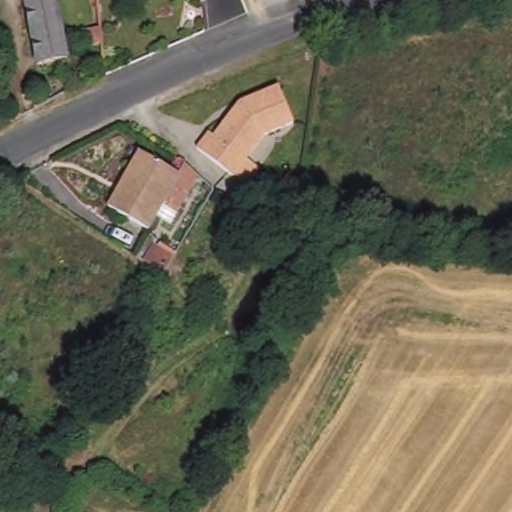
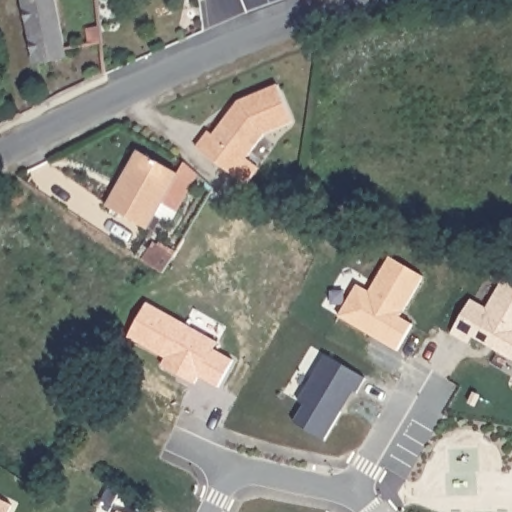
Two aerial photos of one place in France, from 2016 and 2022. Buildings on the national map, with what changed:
unchanged [(67,59),(37,65),(24,0),(55,0),(67,59)]
unchanged [(245,186),(232,176),(196,148),(209,132),(213,136),(239,102),(277,86),(293,122),(264,135),(246,159),(258,168),(245,186)]
unchanged [(177,174),(184,162),(198,175),(177,212),(162,204),(147,230),(108,207),(139,152),(177,174)]
unchanged [(152,244),(174,257),(163,274),(142,261),(152,244)]
new [(370,291),(390,256),(423,277),(401,317),(413,323),(397,352),(338,317),(357,285),(370,291)]
new [(487,307),(502,281),(512,286),(512,362),(506,372),(489,363),(495,352),(472,339),(470,345),(451,335),(471,299),(487,307)]
new [(366,378),(357,393),(351,396),(323,441),(292,422),(302,406),(297,402),(325,355),(366,378)]
new [(7,512),(0,512),(0,497),(12,503),(7,512)]

